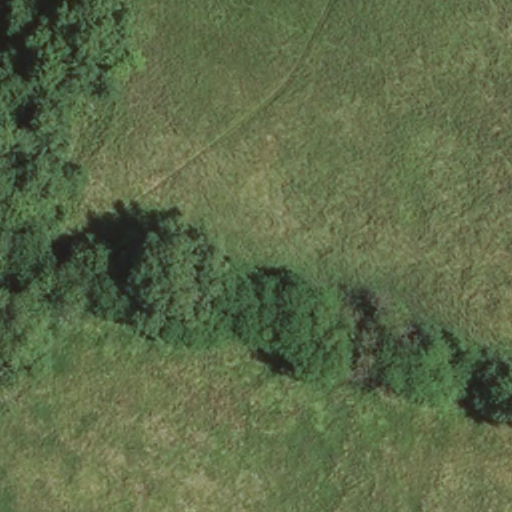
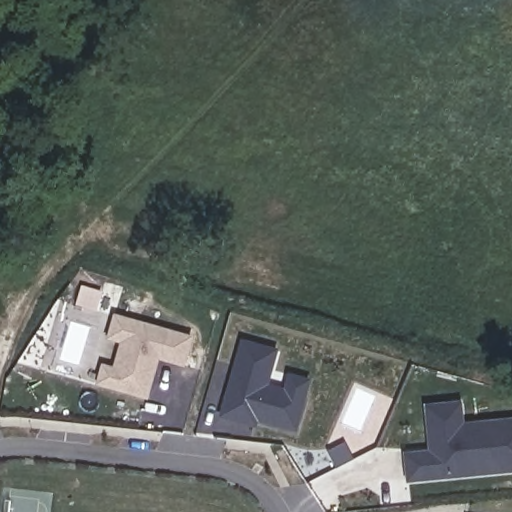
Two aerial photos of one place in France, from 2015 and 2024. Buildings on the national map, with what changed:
new [(185,366),(159,359),(149,399),(100,388),(104,369),(116,372),(123,344),(109,341),(114,319),(192,338),(185,366)]
new [(306,398),(296,432),(240,415),(238,422),(222,418),(244,343),(278,352),(267,386),(306,398)]
new [(287,392),(292,377),(310,382),(306,398),(287,392)]
new [(412,476),(410,451),(446,448),(445,441),(434,442),(431,404),(463,401),(465,423),(485,421),(512,419),(512,468),(412,476)]
new [(255,427),(238,422),(240,415),(256,419),(255,427)]
new [(353,462),(334,467),(329,447),(348,442),(353,462)]

